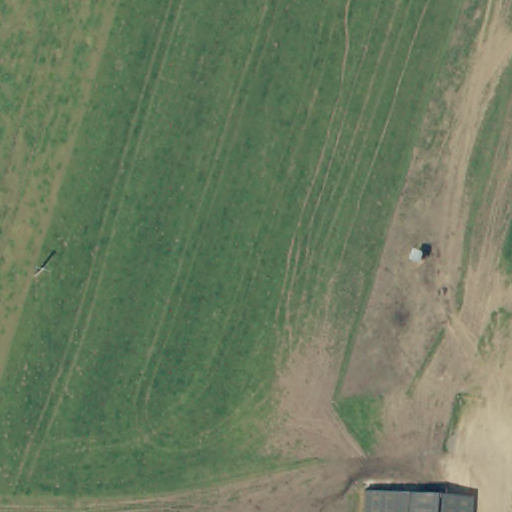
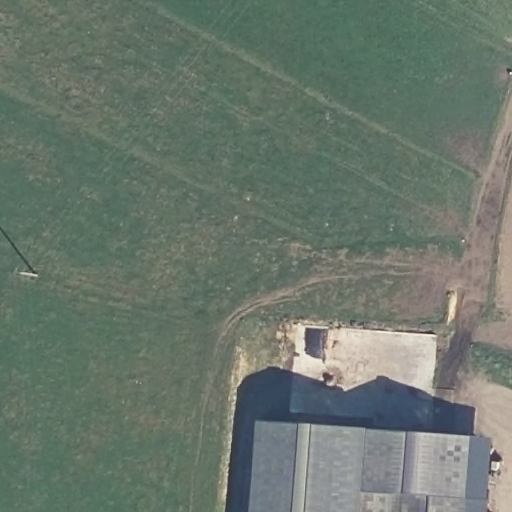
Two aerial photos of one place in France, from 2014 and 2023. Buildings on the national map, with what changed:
new [(362,492),(361,512),(254,512),(260,422),(368,430),(362,492)]
new [(368,430),(498,439),(493,500),(493,512),(467,512),(467,497),(362,492),(368,430)]
unchanged [(362,492),(467,497),(467,512),(361,512),(362,492)]

